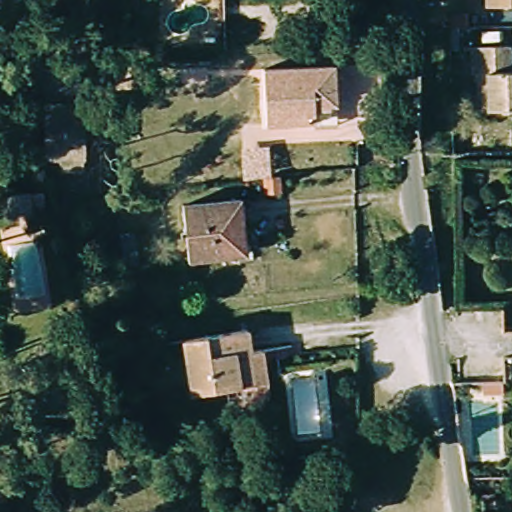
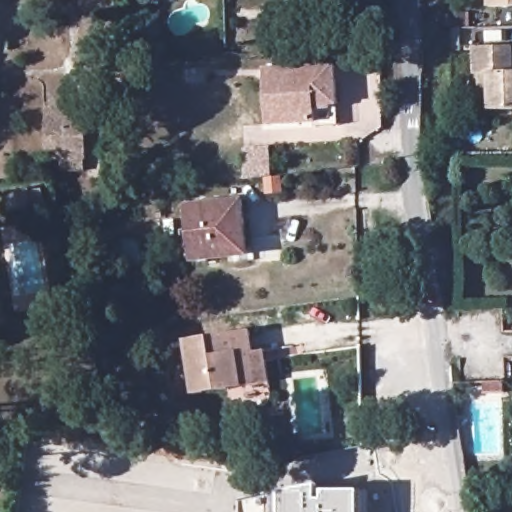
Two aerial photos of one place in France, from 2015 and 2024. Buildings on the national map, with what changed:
unchanged [(489,0),(512,0),(512,6),(489,6),(489,0)]
unchanged [(475,72),(475,45),(505,45),(512,45),(512,109),(493,109),(481,110),(479,72),(475,72)]
unchanged [(316,125),(316,120),(268,122),(265,67),(336,64),(338,102),(339,124),(316,125)]
unchanged [(88,159),(85,159),(85,169),(62,169),(62,161),(48,161),(50,115),(50,105),(75,106),(75,115),(88,116),(88,159)]
unchanged [(283,191),(267,192),(265,174),(281,173),(283,191)]
unchanged [(15,193),(36,189),(37,193),(49,190),(52,205),(18,209),(15,193)]
unchanged [(245,252),(189,256),(185,202),(240,198),(245,252)]
unchanged [(253,330),(260,384),(197,393),(189,339),(253,330)]
new [(282,492),(318,484),(318,501),(323,500),(324,491),(361,490),(361,512),(273,512),(273,494),(282,492)]

